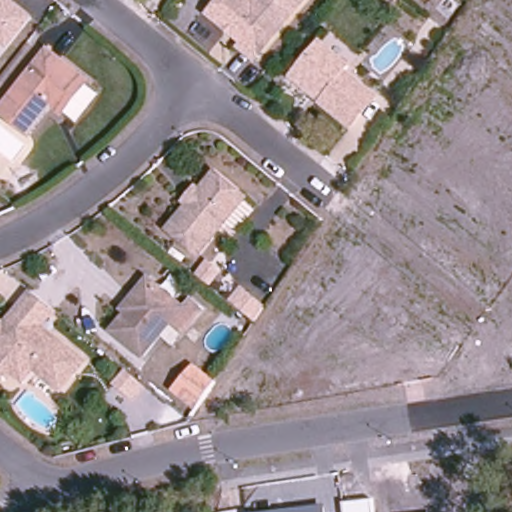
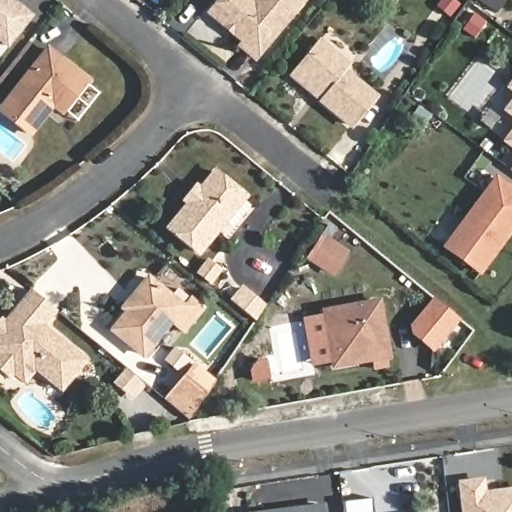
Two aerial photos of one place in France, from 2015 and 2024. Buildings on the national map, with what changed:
unchanged [(8,0),(24,12),(2,40),(0,38),(0,0),(8,0)]
unchanged [(217,0),(249,0),(249,1),(250,0),(297,0),(253,59),(236,49),(240,44),(229,37),(219,31),(203,18),(217,0)]
unchanged [(287,72),(312,39),(344,60),(340,66),(374,87),(350,119),(314,99),(282,79),(287,72)]
unchanged [(80,80),(55,112),(47,104),(24,134),(0,110),(0,104),(45,46),(80,80)]
new [(512,77),(512,94),(504,87),(512,77)]
new [(512,96),(512,119),(501,110),(512,96)]
new [(512,128),(512,149),(501,141),(512,128)]
unchanged [(181,206),(193,187),(197,190),(208,172),(244,190),(204,251),(170,231),(187,205),(181,206)]
new [(440,247),(495,173),(512,186),(512,231),(479,276),(440,247)]
new [(332,276),(304,258),(320,232),(348,251),(332,276)]
unchanged [(122,317),(117,314),(124,304),(137,284),(174,308),(182,296),(210,310),(193,334),(167,319),(142,357),(110,336),(122,317)]
unchanged [(0,367),(0,320),(19,290),(43,306),(34,320),(80,350),(62,378),(31,362),(23,375),(12,368),(9,372),(4,370),(0,367)]
new [(410,326),(433,297),(461,320),(433,353),(411,336),(410,326)]
new [(390,360),(330,370),(319,308),(380,298),(390,360)]
new [(195,411),(171,390),(193,362),(215,380),(195,411)]
demolished [(233,391),(225,403),(215,398),(223,385),(233,391)]
new [(456,481),(483,477),(485,490),(512,487),(512,512),(460,512),(456,481)]
new [(370,497),(372,512),(343,512),(341,502),(370,497)]
unchanged [(327,512),(267,512),(326,505),(327,512)]

